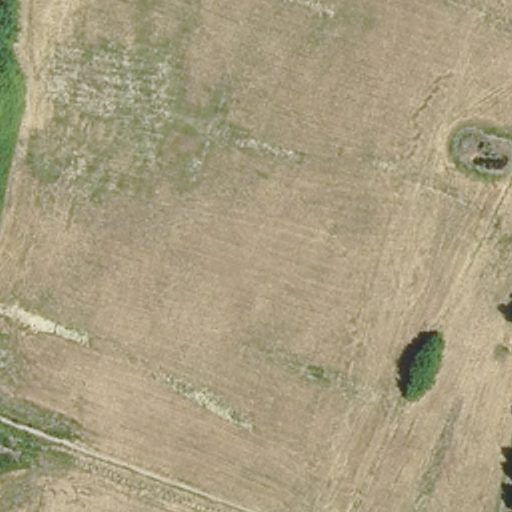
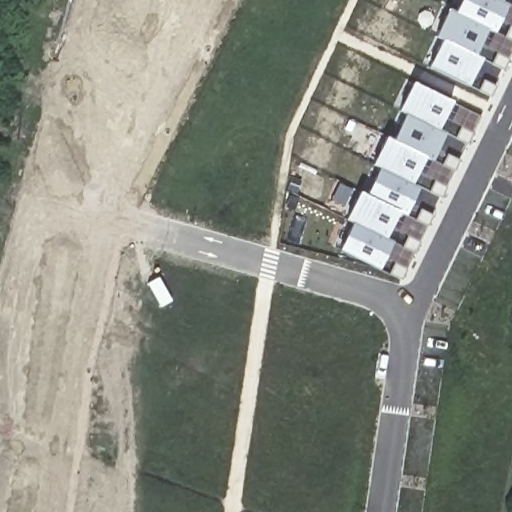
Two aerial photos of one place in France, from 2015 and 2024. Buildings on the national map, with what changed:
new [(427,64),(441,39),(434,35),(448,6),(454,10),(459,0),(500,0),(507,3),(493,32),(487,28),(474,53),(481,57),(467,84),(427,64)]
new [(337,247),(350,222),(344,219),(359,189),(365,193),(378,167),(371,163),(385,134),(392,138),(405,111),(397,108),(412,80),(452,100),(438,127),(445,131),(430,159),(424,155),(411,183),(418,186),(404,215),(397,211),(384,237),(391,240),(377,268),(337,247)]

